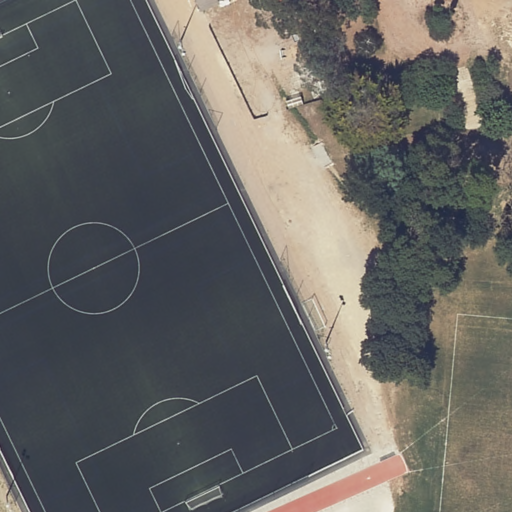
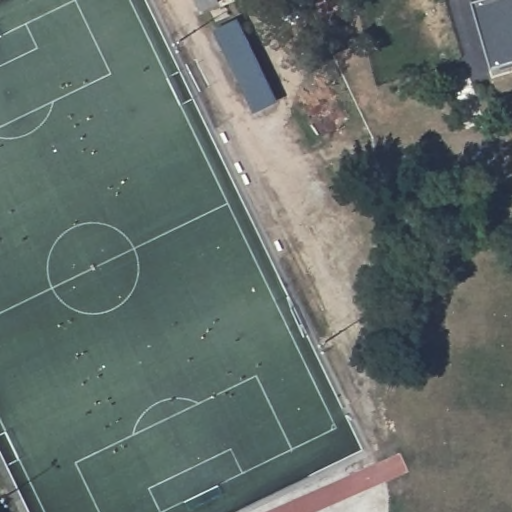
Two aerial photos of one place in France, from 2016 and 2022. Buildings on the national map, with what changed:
unchanged [(208,0),(222,0),(210,5),(208,0)]
new [(472,0),(512,0),(512,60),(491,65),(472,0)]
demolished [(496,0),(512,0),(512,29),(504,31),(496,0)]
new [(238,16),(279,100),(252,113),(212,30),(238,16)]

